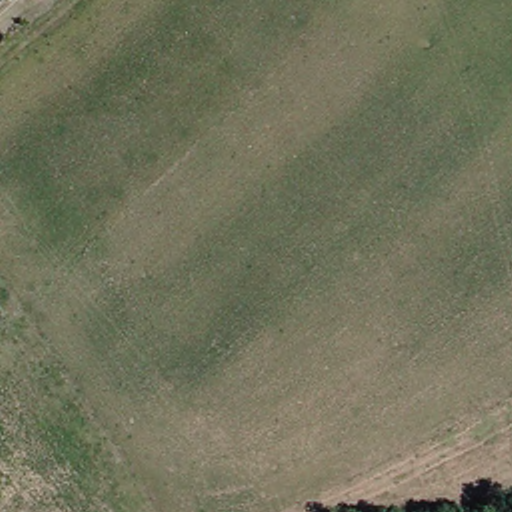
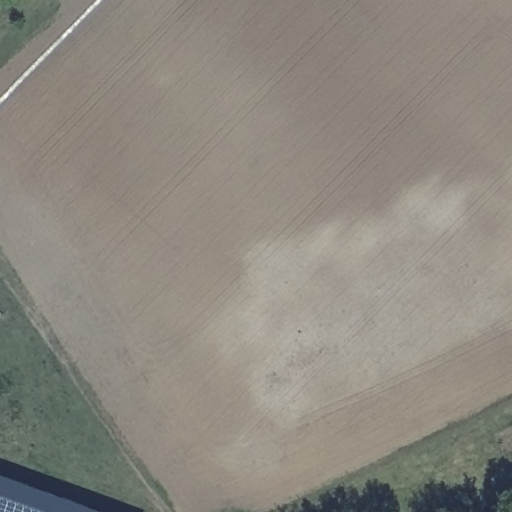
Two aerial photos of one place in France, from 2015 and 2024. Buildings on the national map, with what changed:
new [(94,512),(0,512),(0,475),(94,512)]

